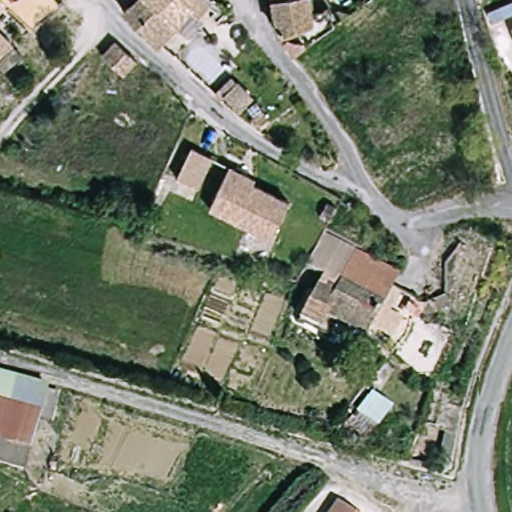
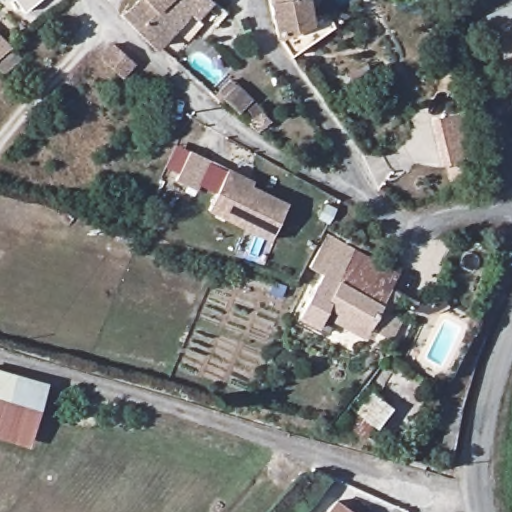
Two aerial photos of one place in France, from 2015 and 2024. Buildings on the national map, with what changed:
unchanged [(172,29),(155,46),(122,14),(135,0),(164,0),(155,10),(172,29)]
unchanged [(211,19),(214,15),(206,7),(196,18),(188,11),(172,29),(155,10),(164,0),(213,0),(226,12),(216,24),(211,19)]
unchanged [(283,36),(275,0),(311,0),(316,23),(283,36)]
unchanged [(0,70),(0,36),(4,39),(2,42),(1,42),(13,55),(16,53),(26,64),(10,79),(0,70)]
unchanged [(100,57),(114,43),(135,62),(121,76),(100,57)]
unchanged [(227,76),(247,91),(238,103),(218,88),(227,76)]
new [(472,159),(442,166),(431,119),(461,113),(472,159)]
unchanged [(176,176),(192,147),(211,158),(196,187),(176,176)]
unchanged [(208,208),(229,168),(253,181),(250,186),(287,206),(269,239),(208,208)]
unchanged [(302,315),(317,288),(298,278),(305,266),(313,253),(325,230),(325,231),(392,267),(398,270),(386,293),(388,294),(370,328),(341,312),(330,330),(302,315)]
unchanged [(395,342),(370,328),(388,294),(413,308),(402,327),(395,342)]
unchanged [(27,452),(0,444),(0,386),(44,399),(27,452)]
unchanged [(393,406),(377,428),(352,411),(366,388),(393,406)]
unchanged [(343,499),(360,512),(334,512),(343,499)]

